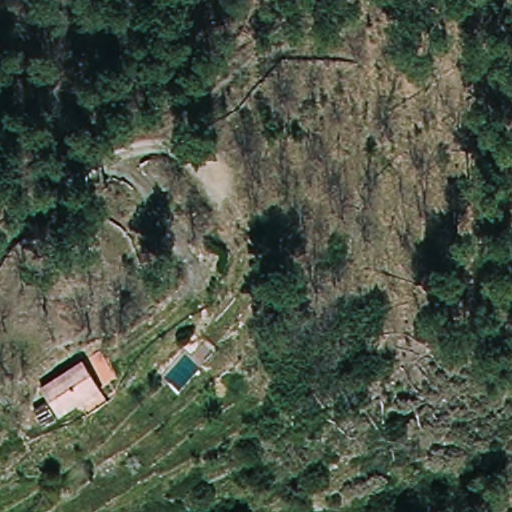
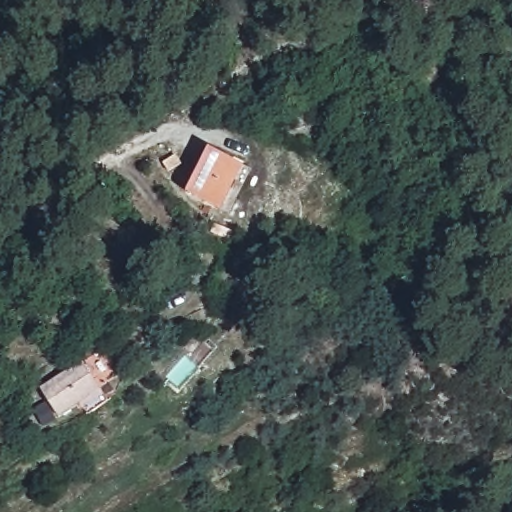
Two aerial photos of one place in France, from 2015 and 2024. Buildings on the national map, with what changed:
new [(246,166),(222,211),(187,192),(211,147),(246,166)]
unchanged [(91,407),(84,396),(60,414),(40,387),(80,358),(100,385),(108,395),(91,407)]

